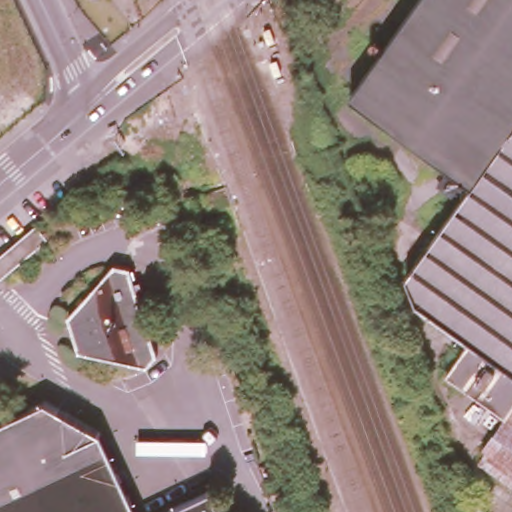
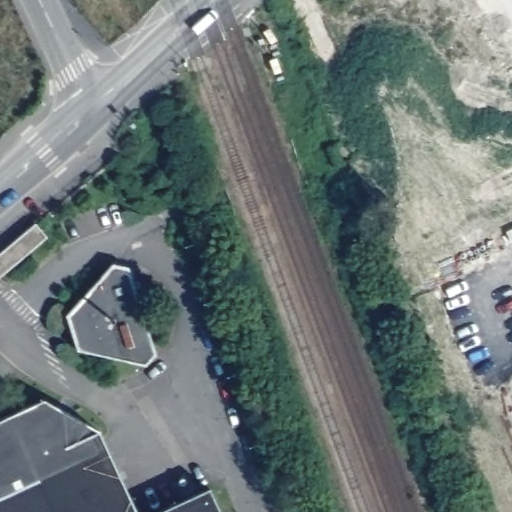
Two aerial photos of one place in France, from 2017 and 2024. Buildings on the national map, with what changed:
demolished [(467,27),(412,75),(374,109),(357,98),(423,0),(487,0),(467,27)]
demolished [(476,177),(374,109),(412,75),(467,27),(487,0),(512,0),(512,126),(476,177)]
demolished [(476,177),(512,126),(512,366),(471,337),(417,299),(407,276),(476,177)]
unchanged [(0,249),(35,219),(47,233),(0,271),(0,249)]
unchanged [(120,262),(134,264),(161,349),(150,357),(84,344),(74,308),(120,262)]
demolished [(512,366),(512,467),(487,449),(484,446),(508,415),(447,372),(471,337),(512,366)]
unchanged [(105,425),(144,512),(0,512),(0,415),(52,391),(105,425)]
unchanged [(230,512),(151,512),(216,482),(230,512)]

